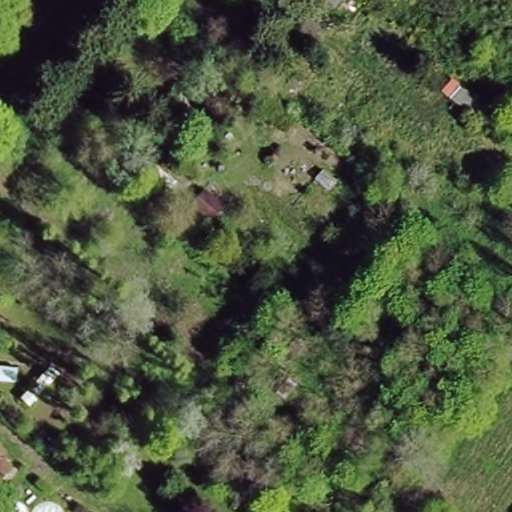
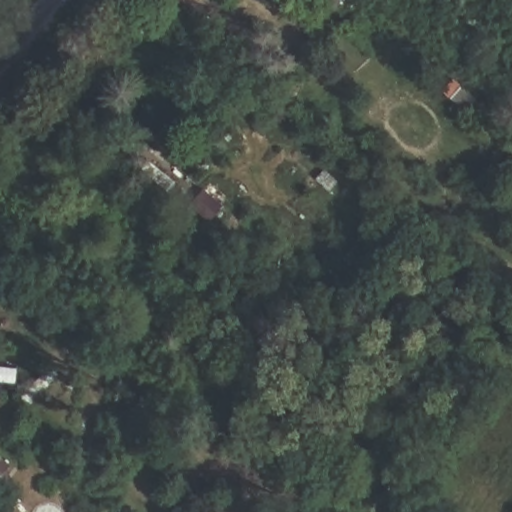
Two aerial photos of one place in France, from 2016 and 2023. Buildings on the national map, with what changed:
unchanged [(323,0),(344,0),(335,10),(323,0)]
unchanged [(140,141),(157,116),(187,141),(169,163),(140,141)]
unchanged [(224,204),(208,216),(192,199),(207,183),(224,204)]
unchanged [(17,382),(0,380),(0,366),(19,367),(17,382)]
unchanged [(0,480),(0,461),(10,468),(0,480)]

